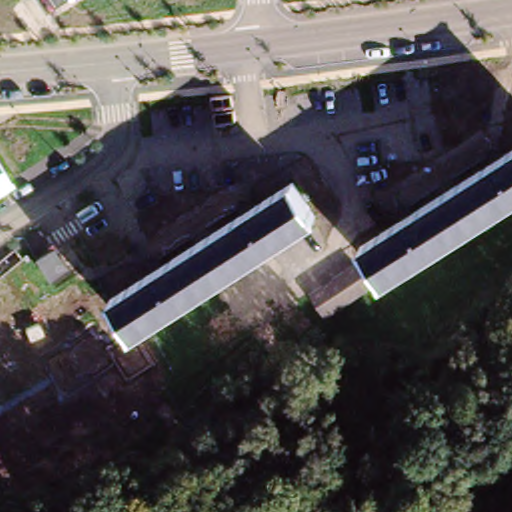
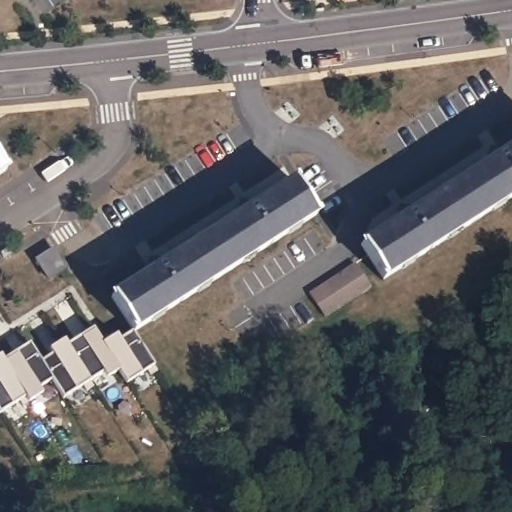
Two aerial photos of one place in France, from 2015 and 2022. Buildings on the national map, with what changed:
unchanged [(384,279),(362,246),(512,150),(512,195),(384,279)]
unchanged [(0,176),(0,171),(2,174),(0,176)]
unchanged [(315,215),(134,332),(112,299),(294,183),(315,215)]
unchanged [(65,274),(47,284),(35,265),(52,254),(65,274)]
unchanged [(365,292),(319,322),(304,299),(350,269),(365,292)]
new [(122,369),(110,377),(107,372),(93,379),(70,343),(96,327),(106,342),(122,369)]
new [(155,366),(130,382),(106,342),(120,333),(122,338),(134,332),(155,366)]
new [(93,379),(66,397),(43,359),(55,352),(52,348),(67,339),(70,343),(93,379)]
new [(54,378),(41,387),(44,392),(32,400),(5,358),(32,342),(43,359),(54,378)]
new [(2,412),(0,409),(0,354),(2,353),(5,358),(28,395),(2,412)]

